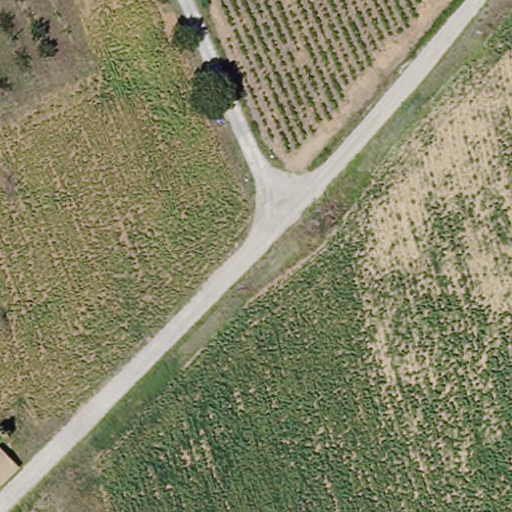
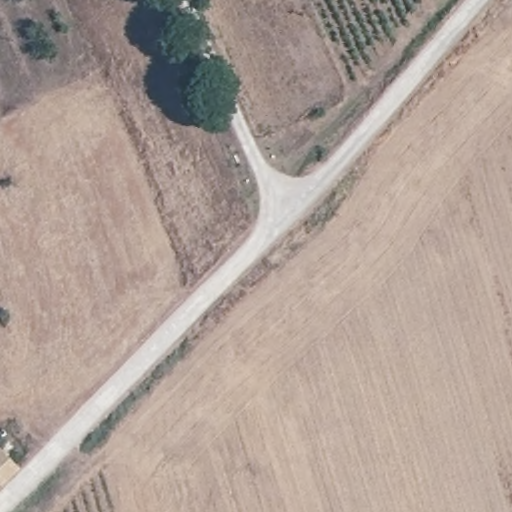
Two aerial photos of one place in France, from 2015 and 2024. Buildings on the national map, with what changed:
unchanged [(15,469),(0,483),(0,453),(15,469)]

